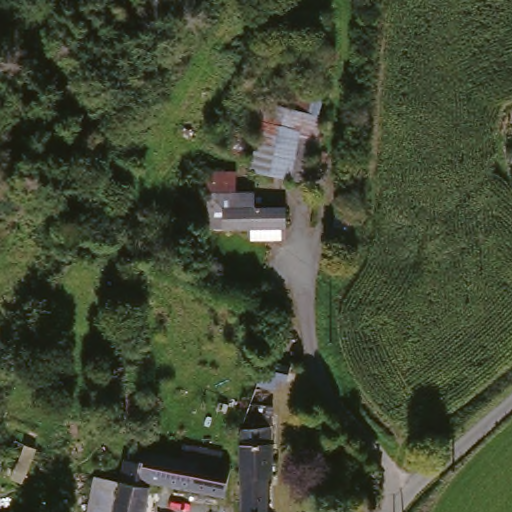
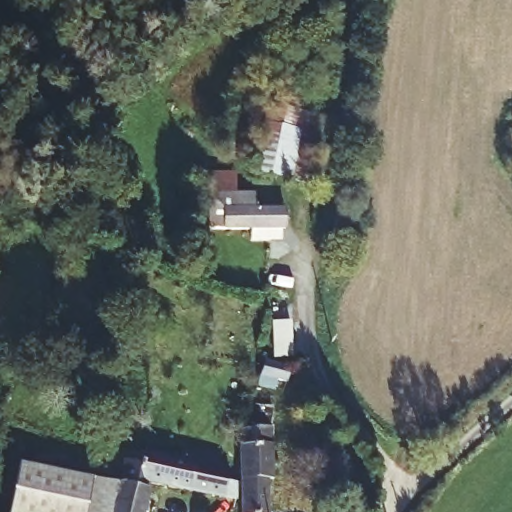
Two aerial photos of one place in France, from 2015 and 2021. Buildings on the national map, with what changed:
unchanged [(318,110),(310,180),(235,170),(242,100),(318,110)]
unchanged [(258,201),(290,201),(291,230),(275,230),(275,244),(253,245),(253,230),(210,230),(208,190),(258,190),(258,201)]
unchanged [(272,473),(242,473),(242,462),(242,425),(258,396),(273,397),(275,426),(276,473),(272,473)]
unchanged [(224,496),(145,482),(144,488),(153,490),(149,512),(117,512),(125,464),(126,459),(140,461),(142,452),(229,468),(224,496)]
new [(117,512),(9,512),(20,464),(122,483),(117,512)]
unchanged [(273,509),(270,509),(270,512),(244,512),(242,473),(272,473),(273,509)]

